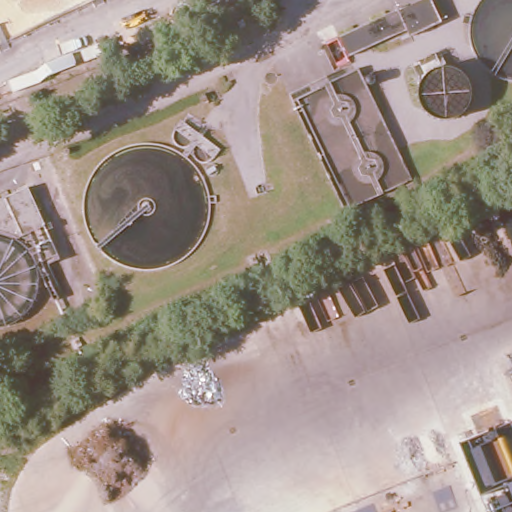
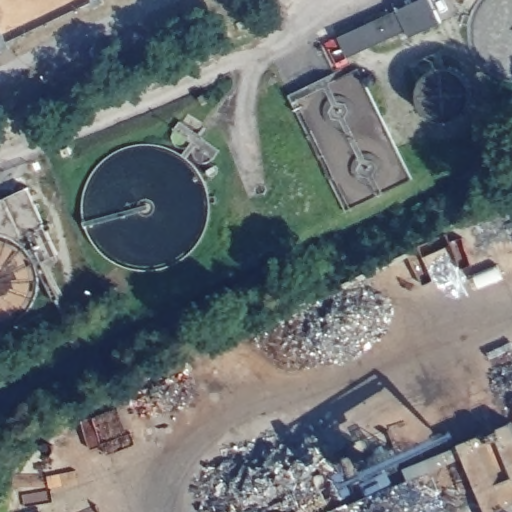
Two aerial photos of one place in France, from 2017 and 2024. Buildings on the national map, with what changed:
unchanged [(417,30),(346,63),(336,40),(422,0),(426,0),(439,27),(420,36),(417,30)]
unchanged [(352,70),(404,184),(349,209),(296,96),(352,70)]
unchanged [(24,234),(19,239),(16,237),(13,234),(9,232),(6,232),(3,231),(1,230),(0,230),(0,199),(3,198),(26,190),(43,225),(24,234)]
unchanged [(487,512),(460,443),(512,422),(512,512),(487,512)]

